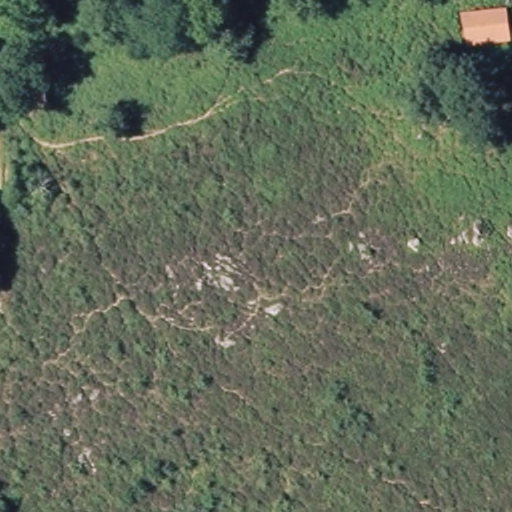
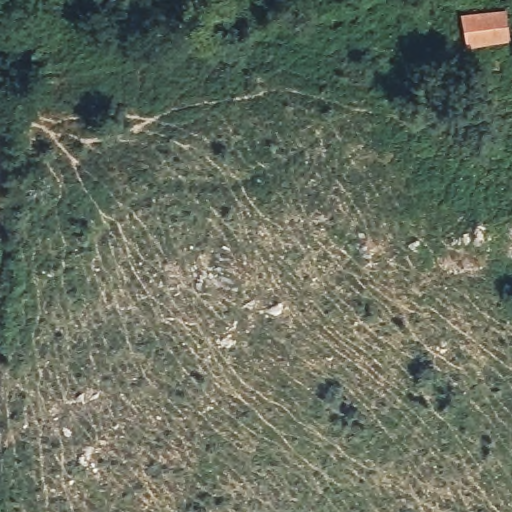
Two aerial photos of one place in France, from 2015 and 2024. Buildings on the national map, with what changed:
unchanged [(506,11),(508,44),(468,45),(467,14),(506,11)]

